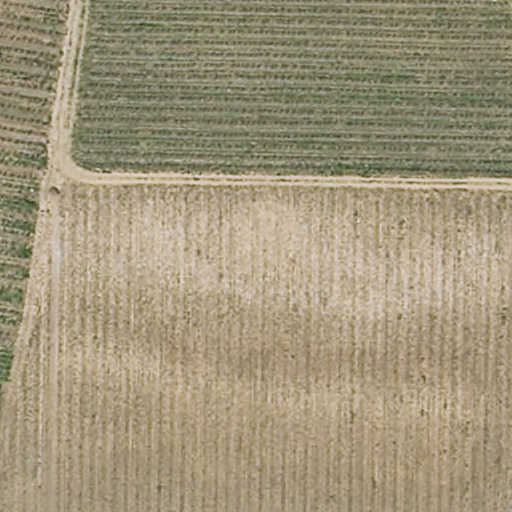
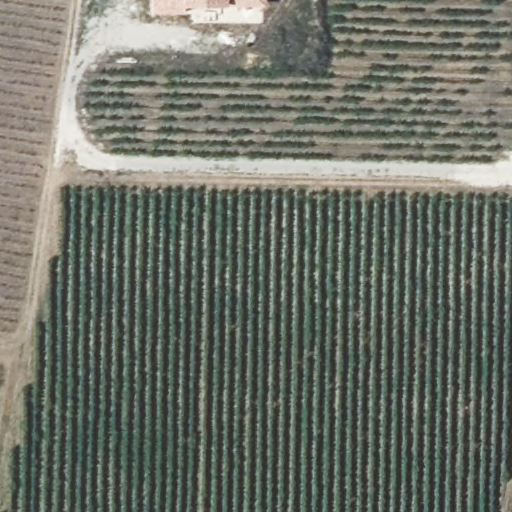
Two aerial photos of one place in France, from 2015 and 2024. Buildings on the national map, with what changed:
new [(265,4),(227,3),(227,5),(184,5),(183,12),(151,12),(151,0),(265,0),(265,4)]

